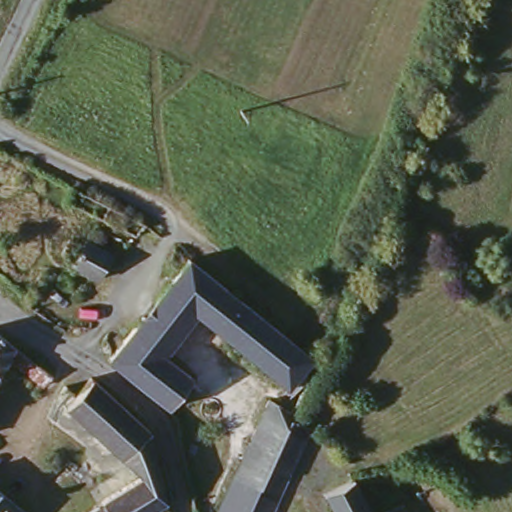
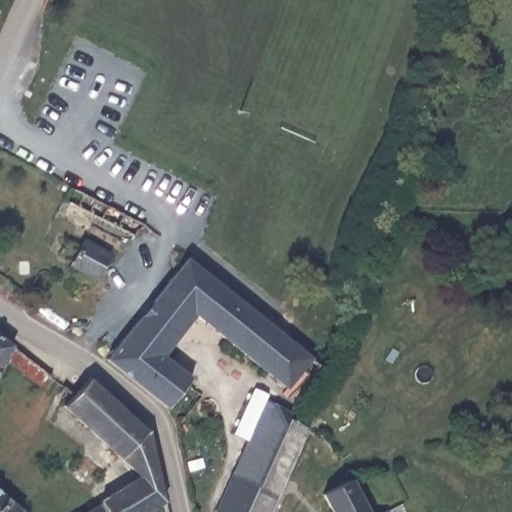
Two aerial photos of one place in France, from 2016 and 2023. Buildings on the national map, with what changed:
unchanged [(147,229),(135,243),(61,193),(71,179),(147,229)]
unchanged [(80,243),(86,233),(114,253),(95,278),(68,261),(71,254),(62,249),(72,237),(80,243)]
unchanged [(314,389),(304,380),(291,395),(193,314),(188,320),(152,294),(181,256),(325,369),(314,389)]
unchanged [(188,320),(160,355),(126,328),(152,294),(188,320)]
unchanged [(126,328),(160,355),(185,373),(158,403),(103,358),(126,328)]
unchanged [(38,386),(6,360),(0,372),(0,336),(46,374),(38,386)]
unchanged [(120,455),(69,402),(83,390),(97,376),(147,430),(120,455)]
unchanged [(235,479),(280,401),(299,413),(291,429),(248,505),(235,479)]
unchanged [(291,429),(314,440),(277,512),(244,512),(248,505),(291,429)]
unchanged [(137,512),(91,512),(94,509),(92,500),(131,467),(120,455),(147,430),(162,491),(137,512)]
unchanged [(328,512),(323,504),(355,485),(370,512),(328,512)]
unchanged [(0,512),(0,504),(7,512),(0,512)]

